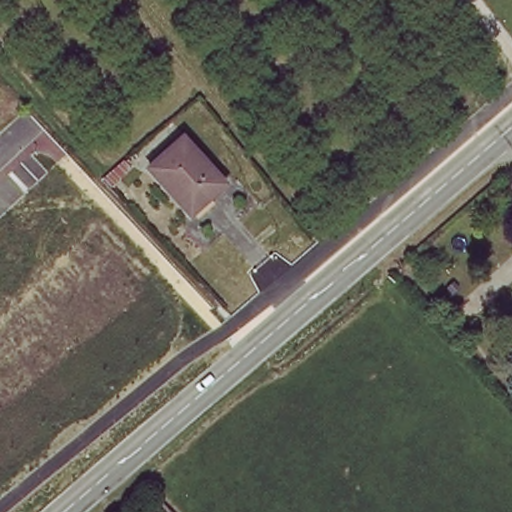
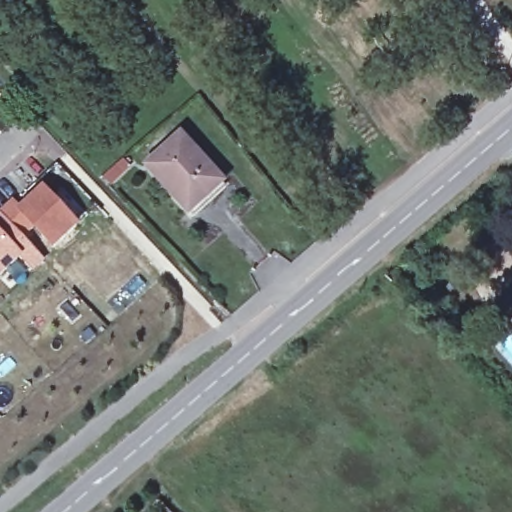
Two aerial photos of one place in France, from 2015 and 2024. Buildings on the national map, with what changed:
unchanged [(218,182),(185,210),(148,165),(180,136),(218,182)]
new [(33,230),(23,240),(0,215),(0,214),(13,200),(21,209),(45,187),(81,227),(53,251),(33,230)]
new [(22,258),(0,279),(0,215),(45,262),(32,273),(22,258)]

